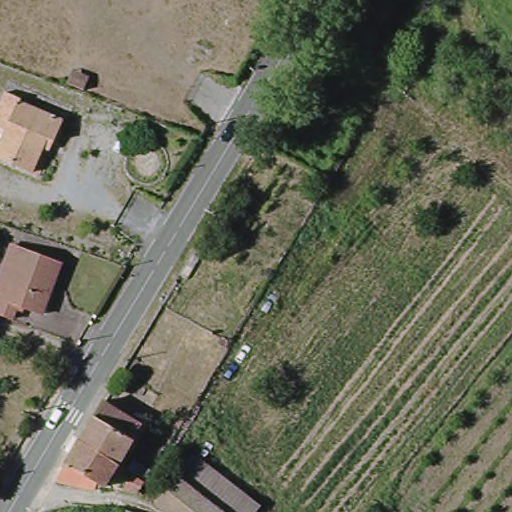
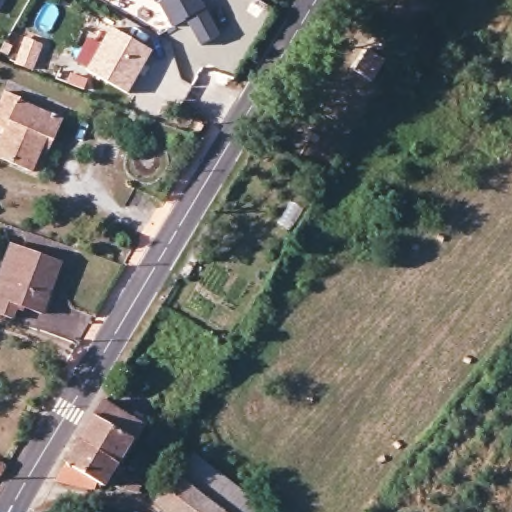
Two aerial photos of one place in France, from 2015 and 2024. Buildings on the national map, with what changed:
new [(230,27),(214,39),(196,15),(183,25),(166,3),(160,0),(209,0),(230,27)]
new [(128,95),(88,73),(112,29),(152,51),(128,95)]
unchanged [(0,159),(0,152),(6,133),(0,131),(0,110),(6,94),(20,99),(19,105),(63,119),(43,173),(0,159)]
unchanged [(59,265),(40,315),(17,307),(12,319),(0,315),(0,301),(20,251),(59,265)]
unchanged [(107,405),(142,427),(118,466),(83,445),(107,405)]
unchanged [(92,491),(58,485),(83,445),(118,466),(104,489),(96,485),(92,491)]
unchanged [(142,448),(155,457),(147,471),(132,462),(142,448)]
new [(12,462),(5,474),(0,481),(0,457),(12,462)]
unchanged [(182,471),(236,512),(178,512),(161,498),(182,471)]

